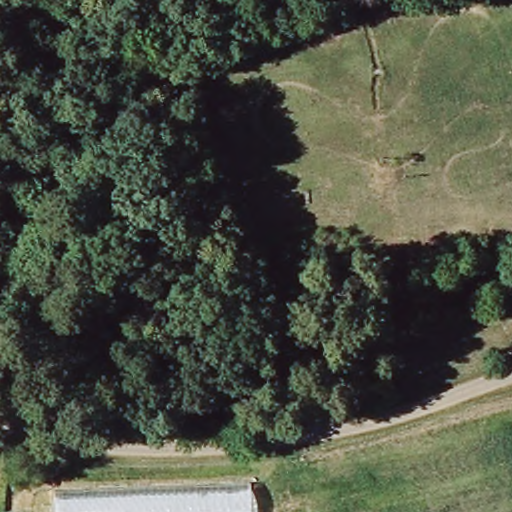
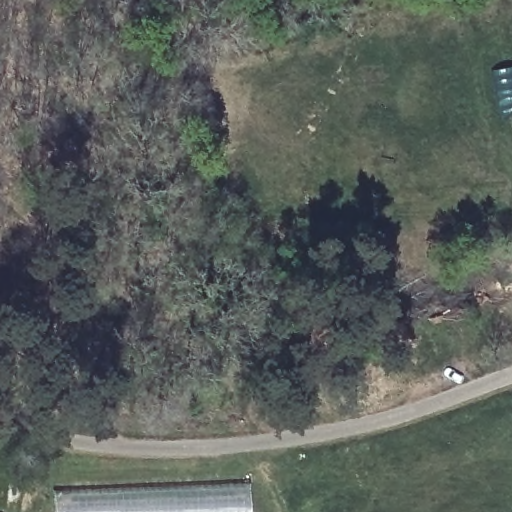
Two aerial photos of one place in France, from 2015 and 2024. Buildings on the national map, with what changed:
unchanged [(249,512),(55,512),(54,491),(248,484),(249,512)]

